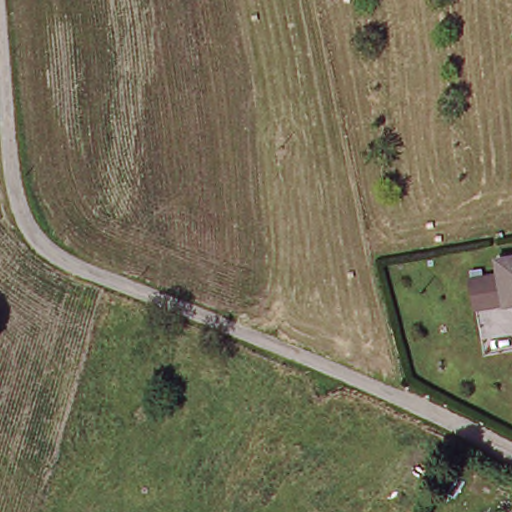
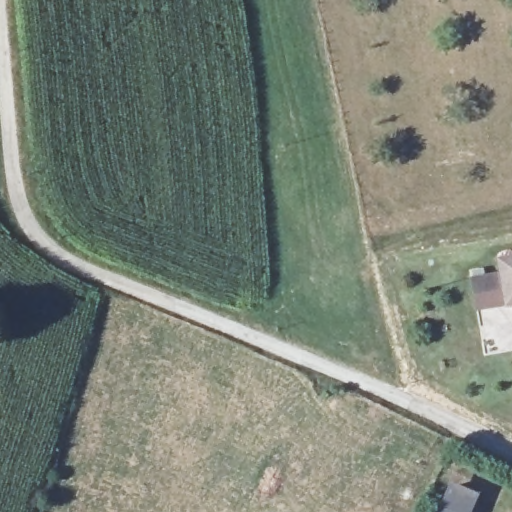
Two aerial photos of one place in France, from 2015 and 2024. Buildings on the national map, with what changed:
unchanged [(483,308),(479,280),(508,275),(506,260),(512,258),(512,303),(483,308)]
new [(469,512),(435,512),(449,482),(477,493),(469,512)]

